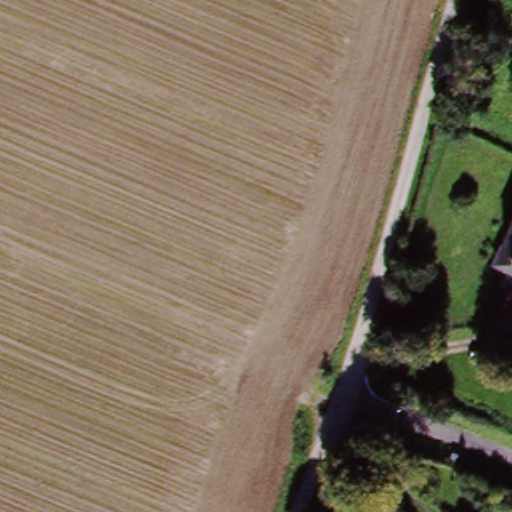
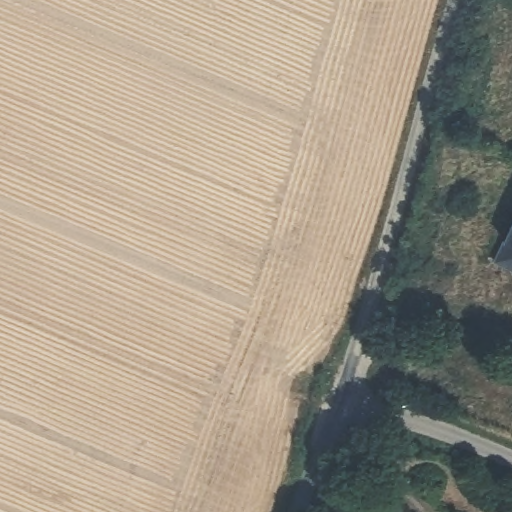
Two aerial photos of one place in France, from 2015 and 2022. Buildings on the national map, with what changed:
unchanged [(512,211),(512,271),(487,259),(512,211)]

